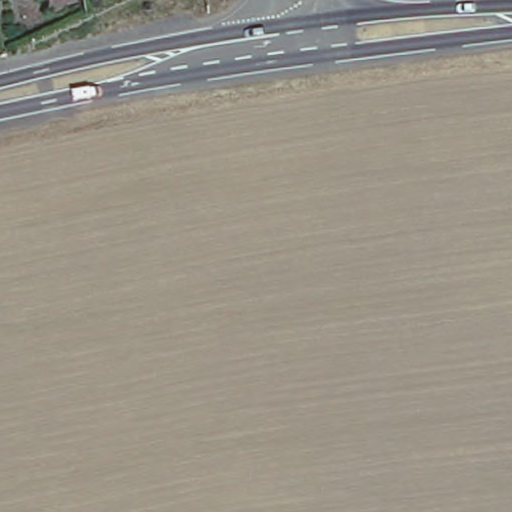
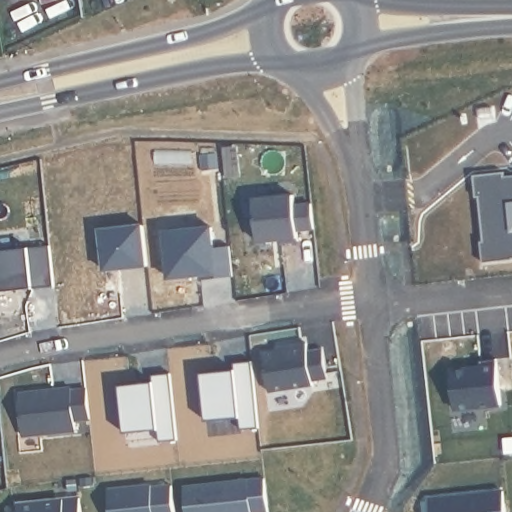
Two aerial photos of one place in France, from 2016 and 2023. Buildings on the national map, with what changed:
new [(502,175),(512,175),(512,259),(480,262),(477,239),(481,238),(477,195),(473,195),(472,175),(502,171),(502,175)]
new [(292,196),(293,202),(310,201),(312,231),(295,232),(295,239),(256,242),(252,199),(292,196)]
new [(140,223),(145,265),(102,270),(97,229),(140,223)]
new [(210,227),(212,246),(229,246),(231,273),(167,280),(164,231),(210,227)]
new [(45,250),(50,291),(0,296),(0,255),(45,250)]
new [(288,348),(287,343),(307,340),(309,348),(324,346),(328,376),(313,379),(314,385),(271,392),(265,352),(288,348)]
new [(249,363),(255,421),(234,425),(231,413),(201,416),(196,369),(249,363)]
new [(499,363),(502,408),(456,411),(452,367),(499,363)]
new [(170,373),(176,431),(155,435),(152,423),(122,426),(117,379),(170,373)]
new [(74,385),(74,388),(89,386),(92,416),(77,418),(78,427),(25,433),(21,391),(74,385)]
new [(249,478),(252,512),(187,512),(184,485),(249,478)]
new [(150,490),(172,487),(174,512),(111,512),(109,490),(150,486),(150,490)]
new [(503,512),(429,512),(428,501),(501,494),(503,512)]
new [(82,512),(19,512),(19,505),(80,498),(82,512)]

